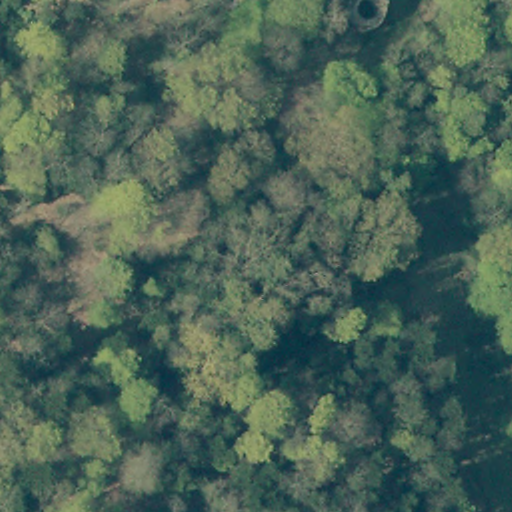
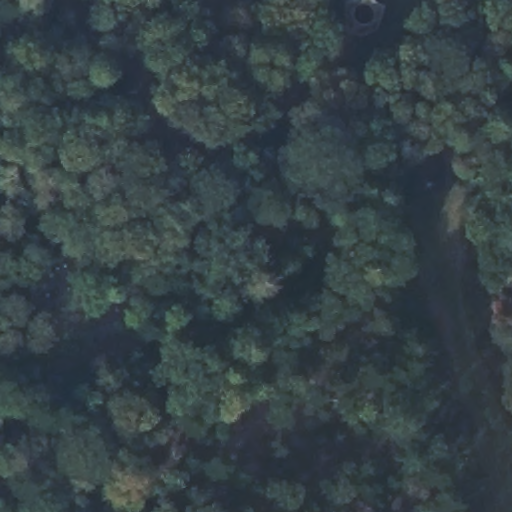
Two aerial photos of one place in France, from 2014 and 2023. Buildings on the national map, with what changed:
unchanged [(381,7),(380,15),(376,25),(374,30),(367,33),(357,34),(348,30),(344,24),(341,14),(342,6),(345,3),(351,0),(376,0),(380,4),(381,7)]

